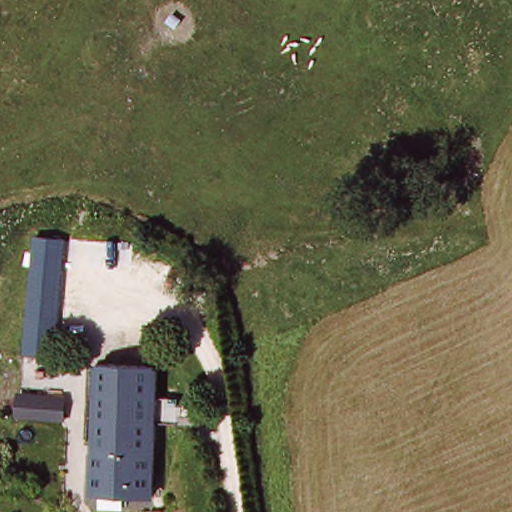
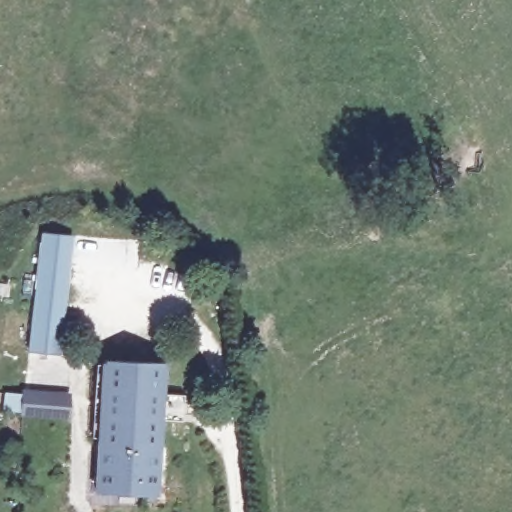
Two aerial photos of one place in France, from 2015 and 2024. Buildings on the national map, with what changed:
unchanged [(40,234),(66,236),(70,237),(59,354),(31,351),(29,351),(40,234)]
unchanged [(169,362),(163,419),(156,493),(97,487),(97,486),(102,433),(110,356),(169,362)]
unchanged [(66,418),(36,415),(21,413),(22,397),(37,399),(68,402),(66,418)]

